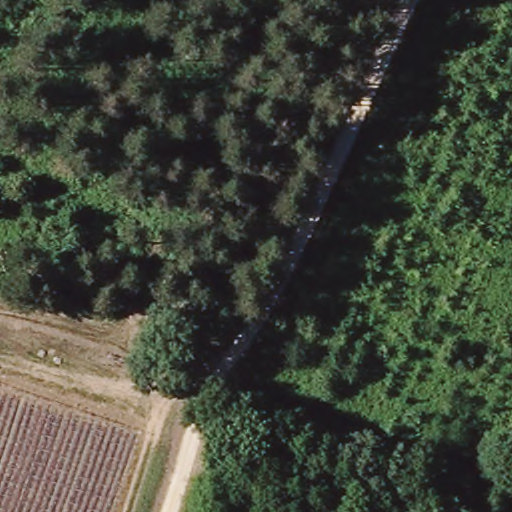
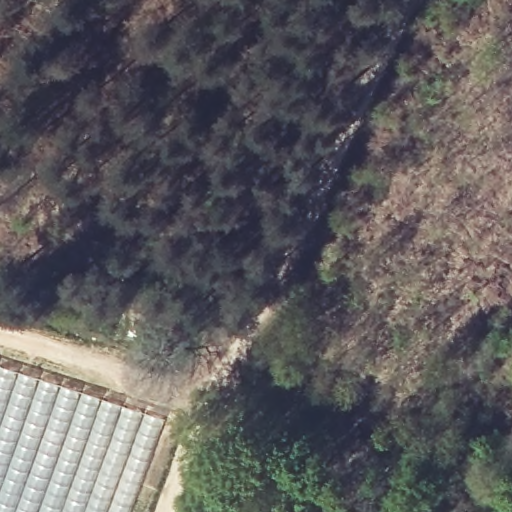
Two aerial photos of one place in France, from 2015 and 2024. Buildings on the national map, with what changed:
new [(129,457),(132,457),(129,470),(135,472),(132,481),(136,482),(135,484),(126,481),(114,511),(116,512),(0,512),(0,367),(144,413),(129,457)]

